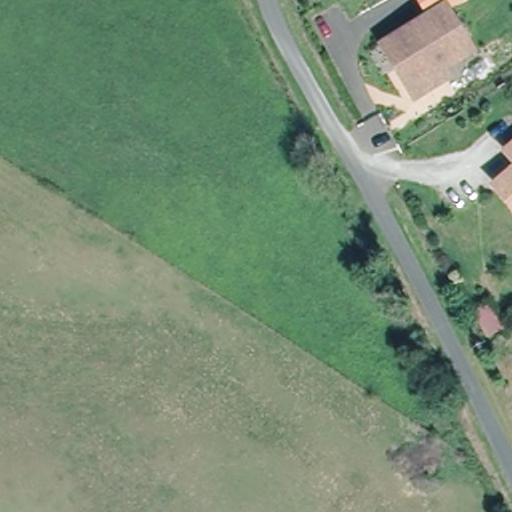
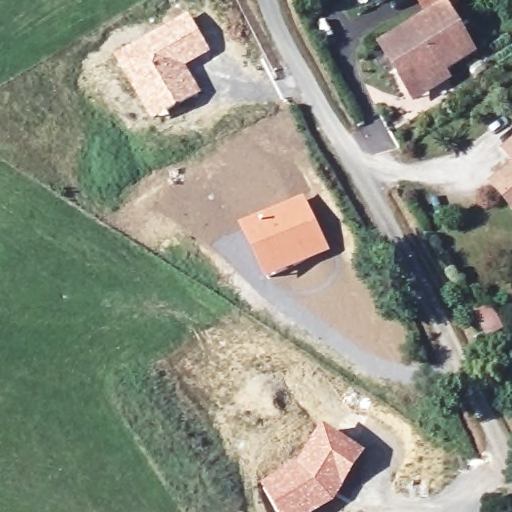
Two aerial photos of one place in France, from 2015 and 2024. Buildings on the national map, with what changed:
unchanged [(443,5),(424,15),(415,0),(466,0),(447,12),(443,5)]
unchanged [(412,95),(403,77),(380,40),(443,5),(469,46),(437,67),(444,76),(412,95)]
new [(188,14),(211,52),(187,68),(202,94),(153,121),(114,59),(188,14)]
unchanged [(512,176),(512,200),(501,185),(512,176)]
new [(303,195),(330,251),(300,266),(265,280),(239,226),(303,195)]
new [(323,425),(365,451),(334,501),(314,512),(277,512),(262,487),(296,465),(323,425)]

